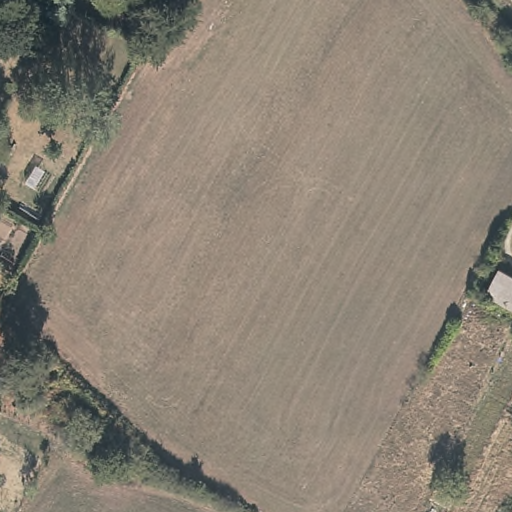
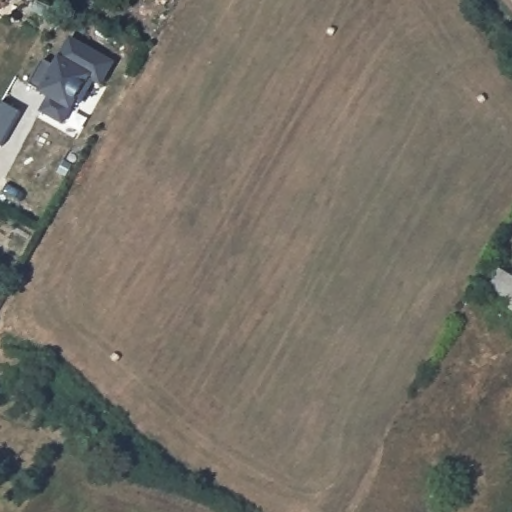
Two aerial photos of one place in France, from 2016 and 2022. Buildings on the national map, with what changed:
new [(117,63),(102,86),(94,81),(82,104),(79,102),(73,111),(64,126),(40,113),(47,99),(37,92),(39,90),(27,82),(41,59),(54,64),(59,55),(67,36),(117,63)]
unchanged [(512,278),(512,311),(487,297),(501,272),(512,278)]
unchanged [(451,512),(446,512),(431,505),(437,493),(456,503),(451,512)]

